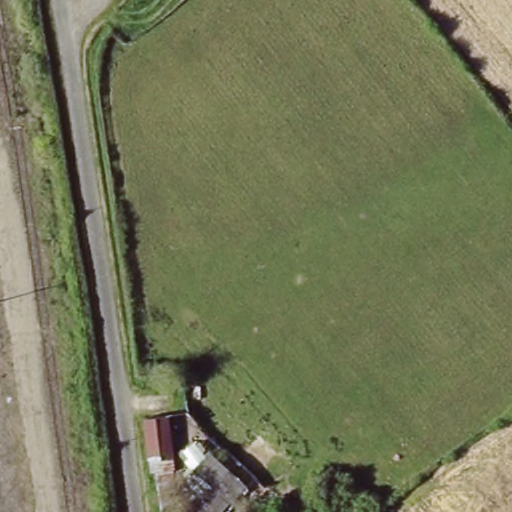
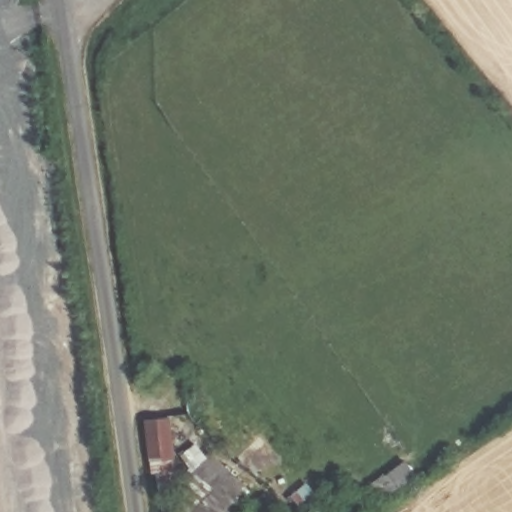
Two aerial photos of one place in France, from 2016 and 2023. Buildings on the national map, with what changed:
unchanged [(158,478),(156,465),(150,416),(173,412),(176,415),(182,462),(178,462),(179,475),(158,478)]
unchanged [(213,452),(229,472),(236,465),(255,485),(233,512),(190,512),(173,488),(213,452)]

